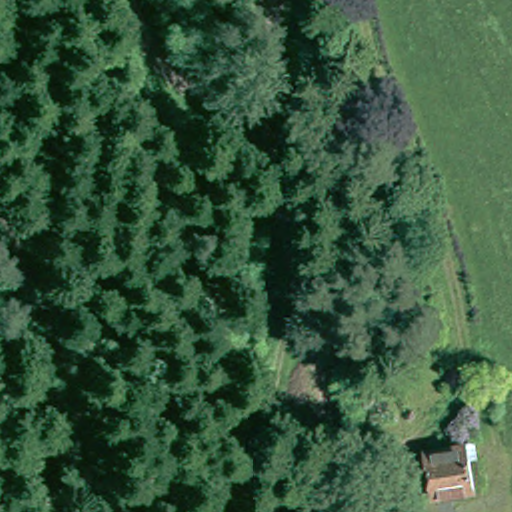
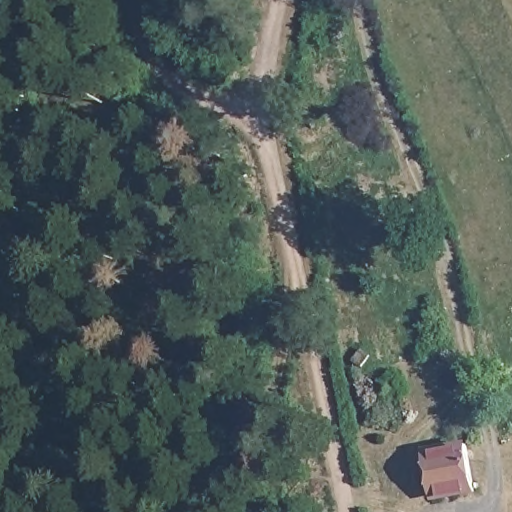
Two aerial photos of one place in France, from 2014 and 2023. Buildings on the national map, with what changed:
unchanged [(433,498),(425,451),(465,444),(474,442),(477,458),(468,459),(475,491),(433,498)]

